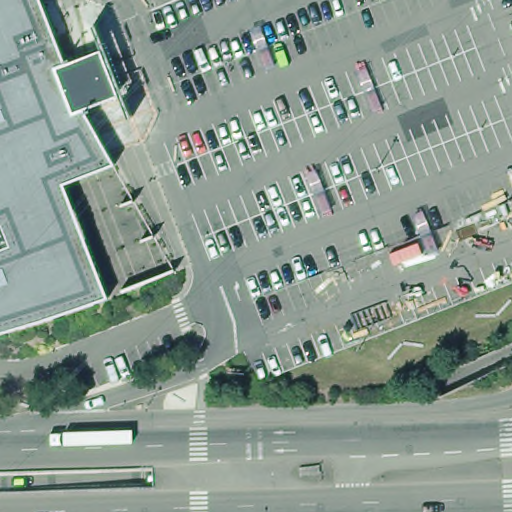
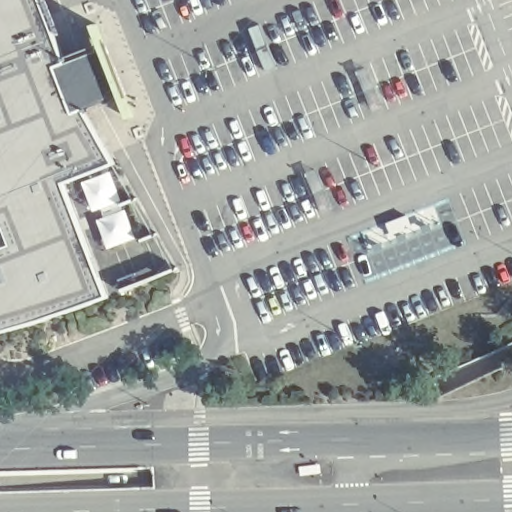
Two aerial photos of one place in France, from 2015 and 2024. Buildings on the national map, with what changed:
unchanged [(92,52),(110,99),(83,109),(114,164),(63,184),(108,298),(41,323),(0,336),(0,0),(40,0),(64,62),(92,52)]

